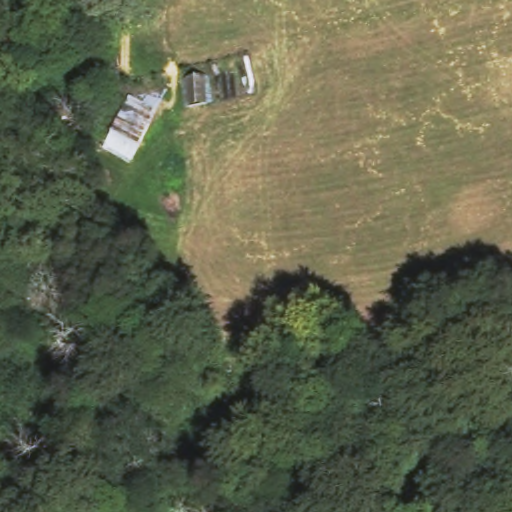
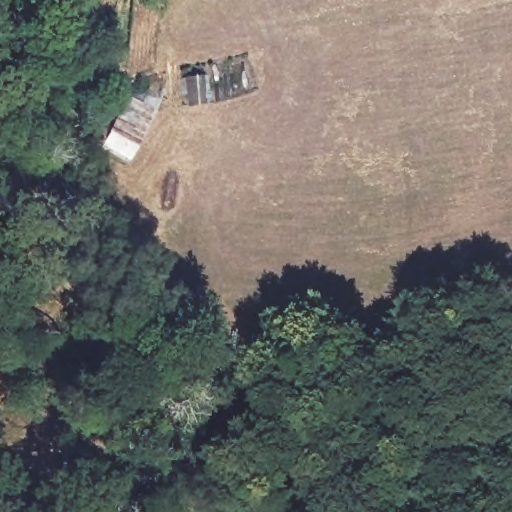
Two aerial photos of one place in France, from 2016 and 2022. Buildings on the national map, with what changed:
unchanged [(152,106),(128,158),(99,144),(124,91),(152,106)]

